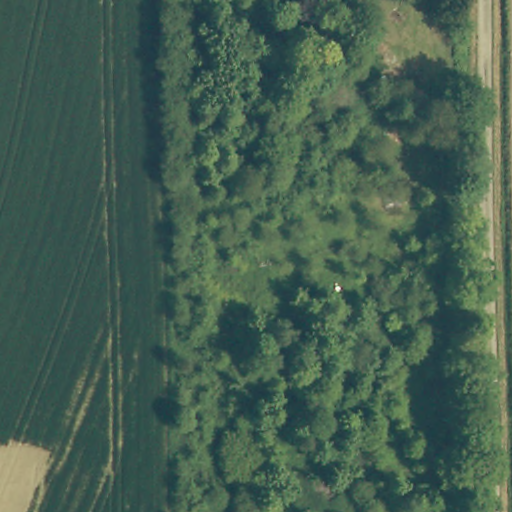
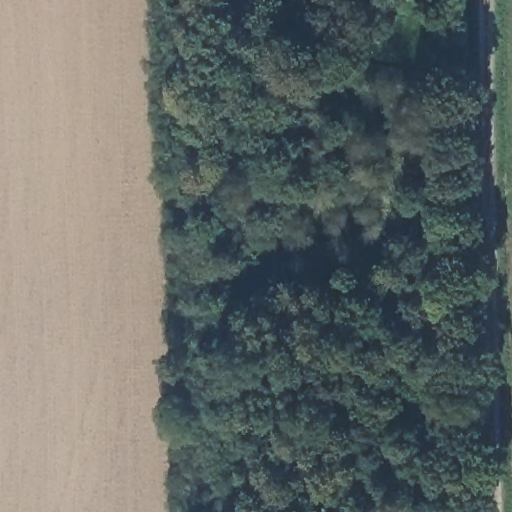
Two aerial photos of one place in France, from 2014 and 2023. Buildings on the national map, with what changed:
unchanged [(435,0),(448,0),(449,5),(435,5),(435,0)]

